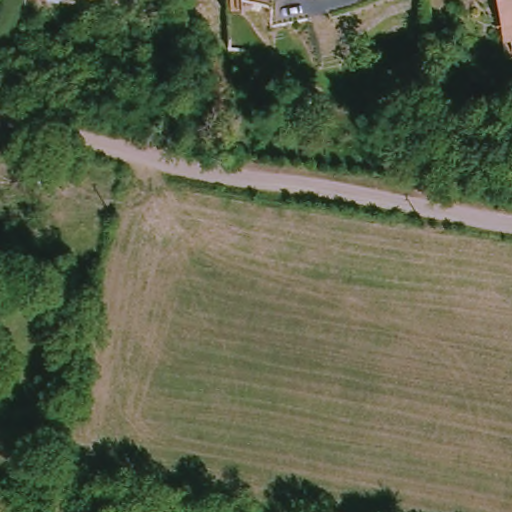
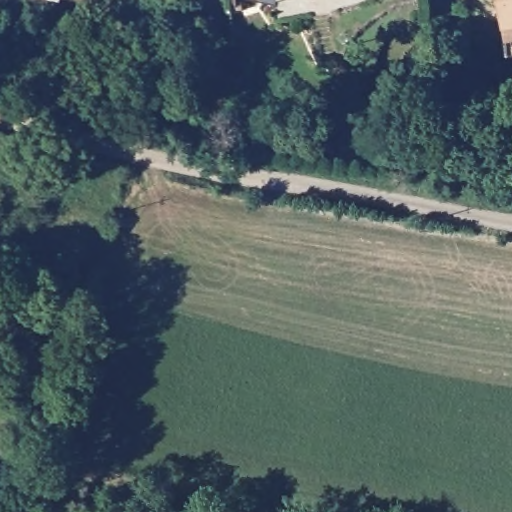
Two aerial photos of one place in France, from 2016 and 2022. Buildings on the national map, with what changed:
unchanged [(499,13),(496,0),(512,0),(512,57),(504,57),(499,13)]
unchanged [(240,30),(240,58),(225,56),(225,29),(240,30)]

